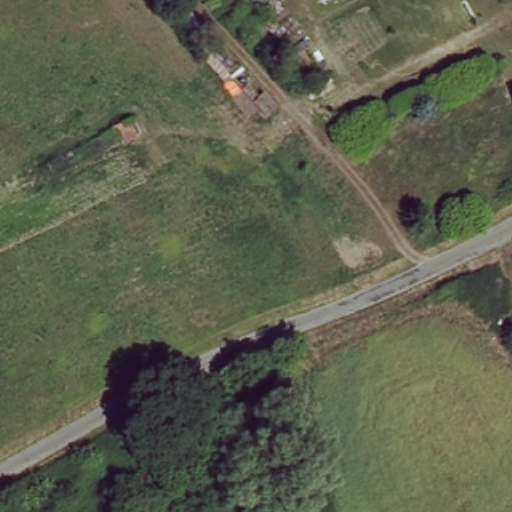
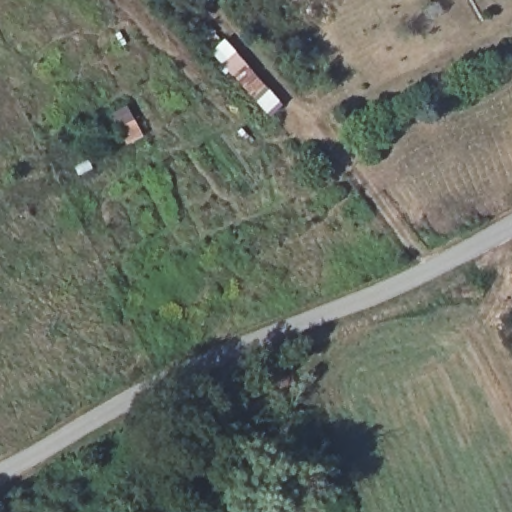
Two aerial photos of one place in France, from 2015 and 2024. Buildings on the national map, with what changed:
unchanged [(253,119),(211,61),(232,48),(272,104),(253,119)]

